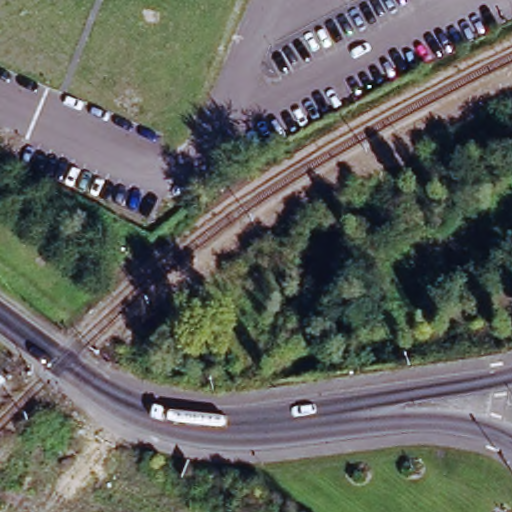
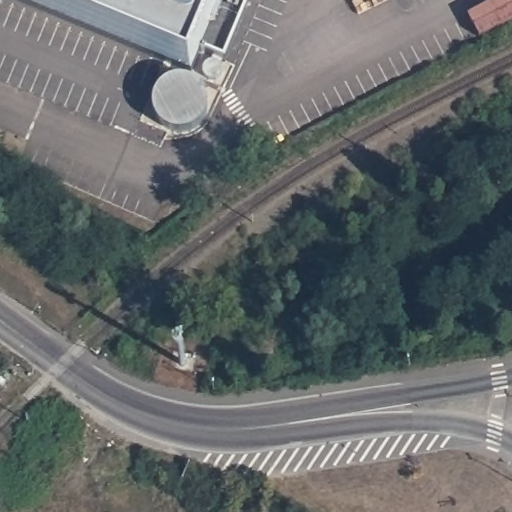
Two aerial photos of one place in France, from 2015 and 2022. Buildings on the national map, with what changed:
new [(21,0),(220,0),(198,52),(191,72),(21,0)]

